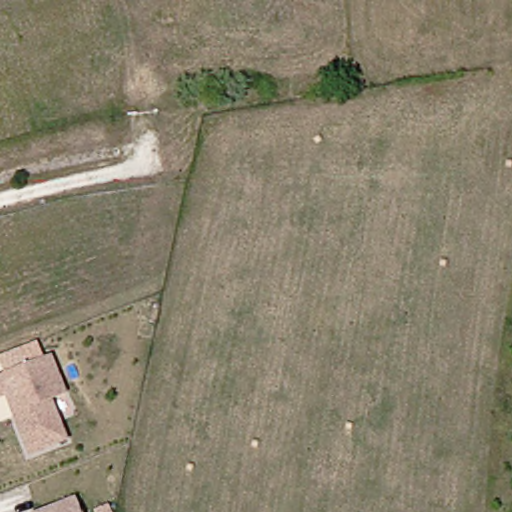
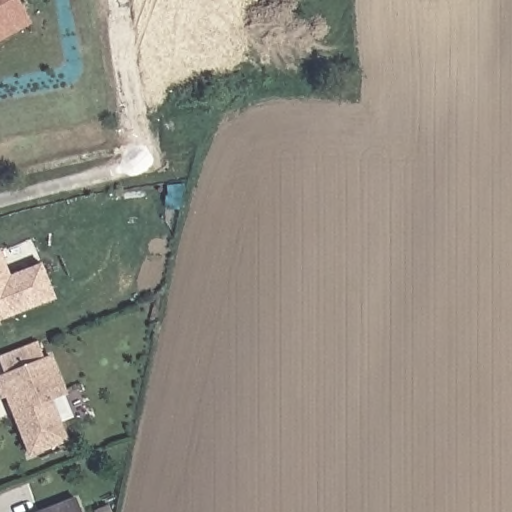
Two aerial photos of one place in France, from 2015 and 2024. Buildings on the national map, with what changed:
new [(0,0),(19,0),(24,9),(31,21),(0,39),(0,0)]
new [(11,276),(42,263),(56,298),(0,321),(0,251),(1,250),(11,276)]
unchanged [(0,396),(0,375),(49,356),(63,393),(48,399),(64,440),(27,454),(11,413),(9,406),(4,395),(0,396)]
unchanged [(79,499),(84,512),(46,512),(79,499)]

